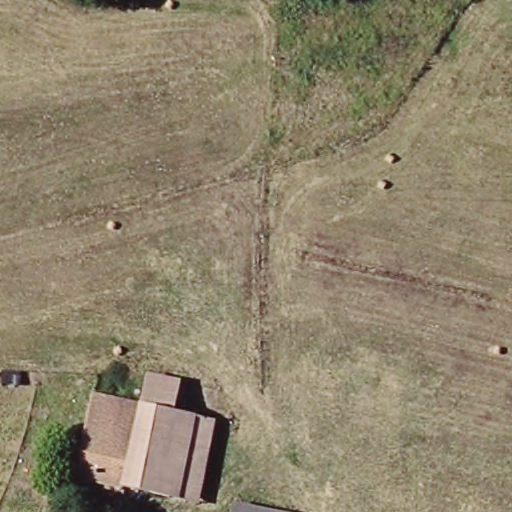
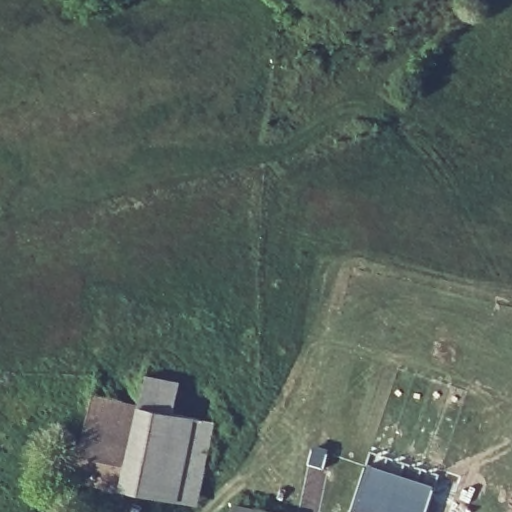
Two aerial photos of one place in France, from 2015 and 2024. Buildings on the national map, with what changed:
unchanged [(152,360),(184,365),(176,409),(217,417),(201,499),(74,474),(90,394),(143,404),(152,360)]
new [(312,444),(330,448),(318,512),(298,507),(312,444)]
new [(436,484),(427,512),(353,512),(349,511),(366,462),(436,484)]

